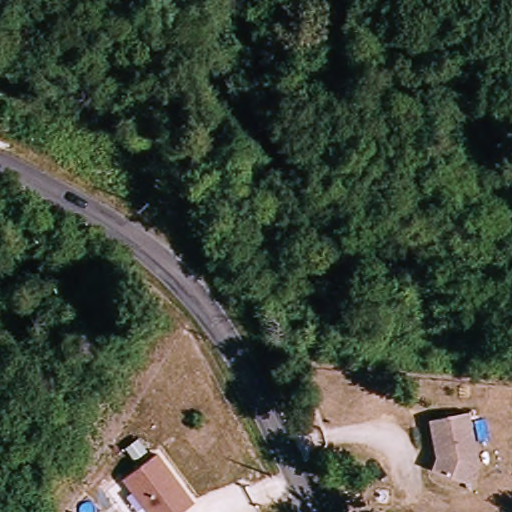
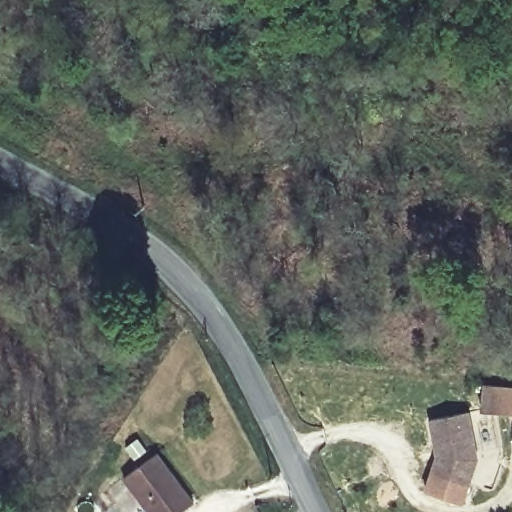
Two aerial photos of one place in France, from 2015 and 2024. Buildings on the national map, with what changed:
new [(512,388),(512,412),(480,408),(482,385),(512,388)]
unchanged [(469,412),(477,462),(470,483),(428,470),(433,460),(427,420),(469,412)]
unchanged [(159,452),(196,501),(181,512),(151,512),(124,477),(159,452)]
unchanged [(462,506),(422,493),(428,470),(470,483),(462,506)]

